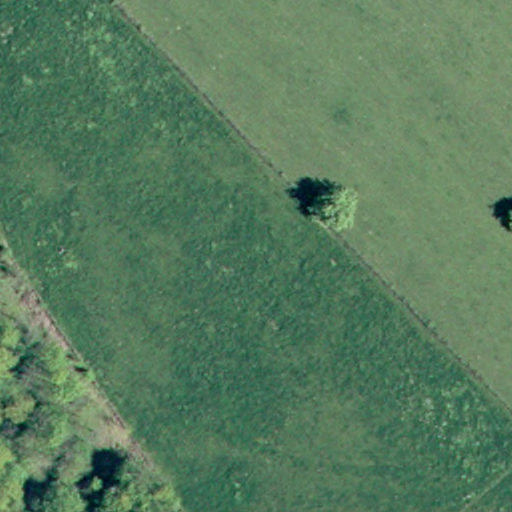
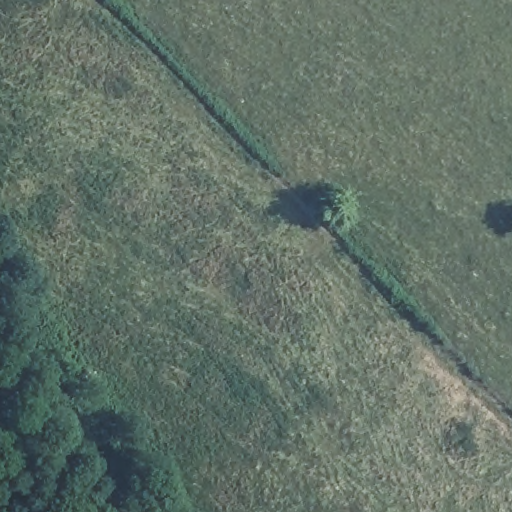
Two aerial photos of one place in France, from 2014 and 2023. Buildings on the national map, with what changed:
unchanged [(57,465),(114,503),(108,512),(0,512),(0,471),(5,465),(42,489),(57,465)]

